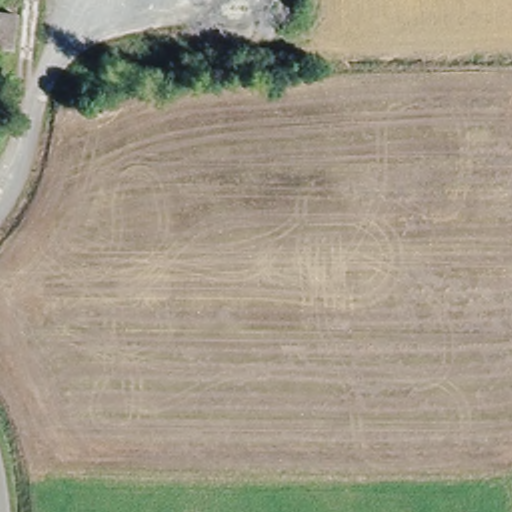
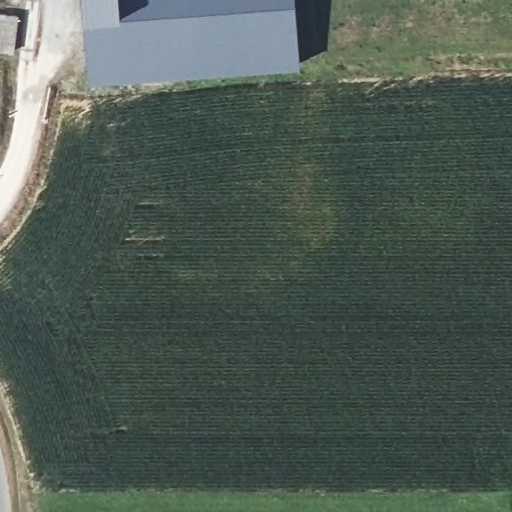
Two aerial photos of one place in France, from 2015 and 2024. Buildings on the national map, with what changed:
new [(300,65),(176,70),(89,77),(82,0),(295,0),(300,65)]
unchanged [(21,52),(0,49),(0,15),(25,16),(21,52)]

